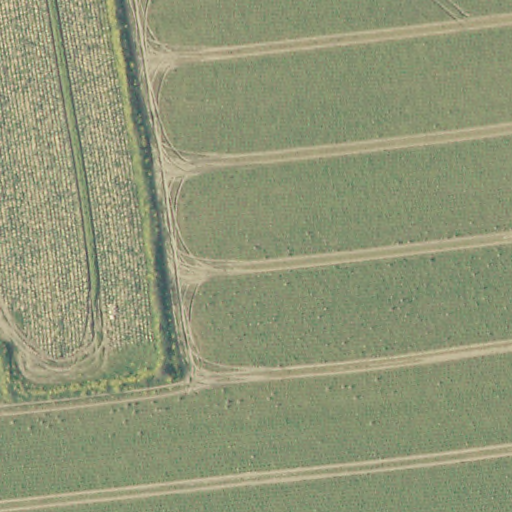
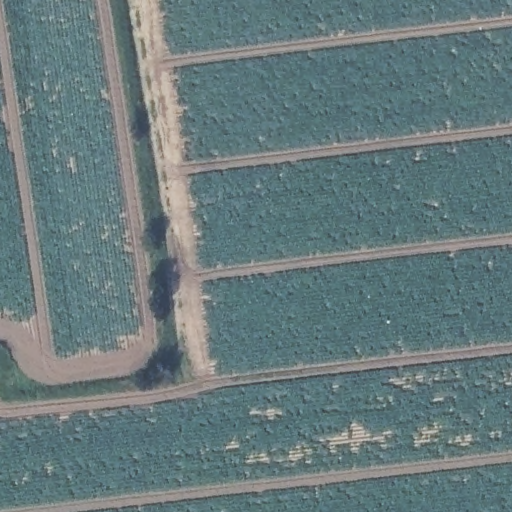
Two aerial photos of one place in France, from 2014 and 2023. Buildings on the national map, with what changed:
[]

